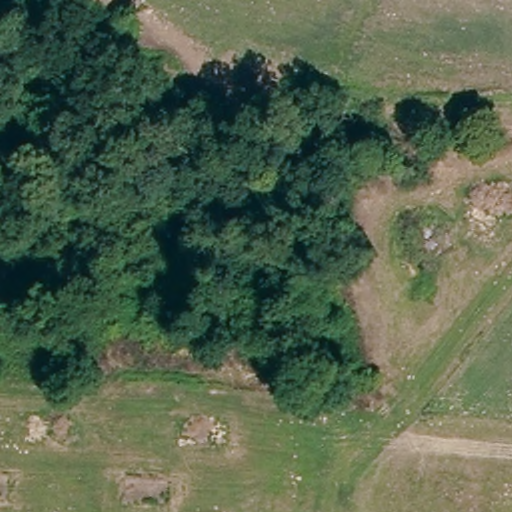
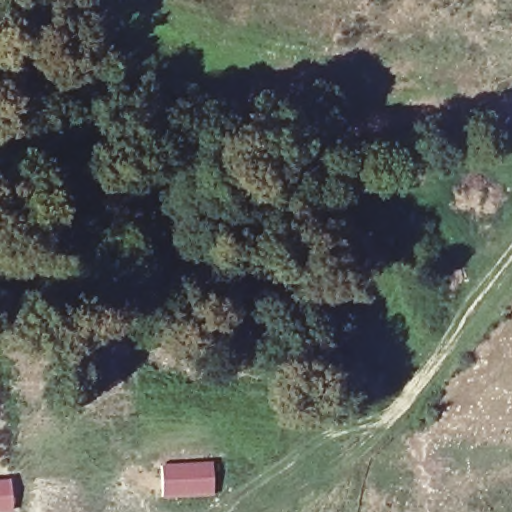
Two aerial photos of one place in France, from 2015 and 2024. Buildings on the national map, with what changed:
new [(213,461),(215,497),(162,499),(160,464),(213,461)]

